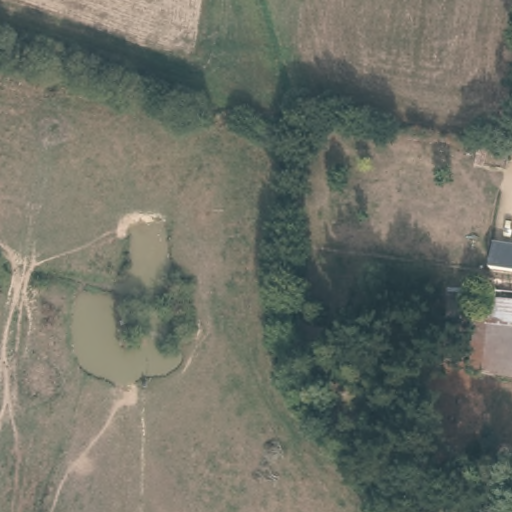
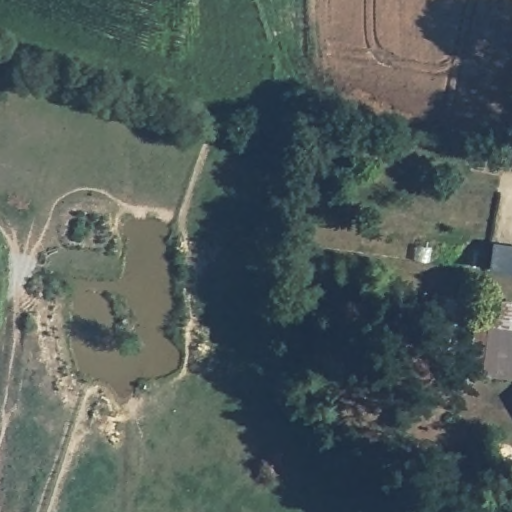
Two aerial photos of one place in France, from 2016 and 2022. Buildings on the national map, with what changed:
unchanged [(512,267),(501,266),(504,241),(512,242),(512,267)]
unchanged [(486,300),(512,303),(512,374),(479,372),(486,300)]

